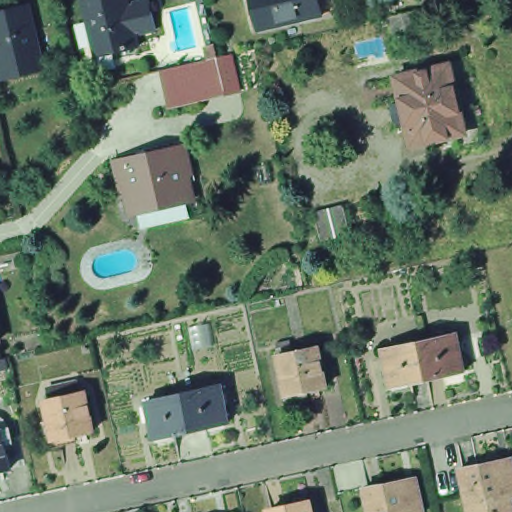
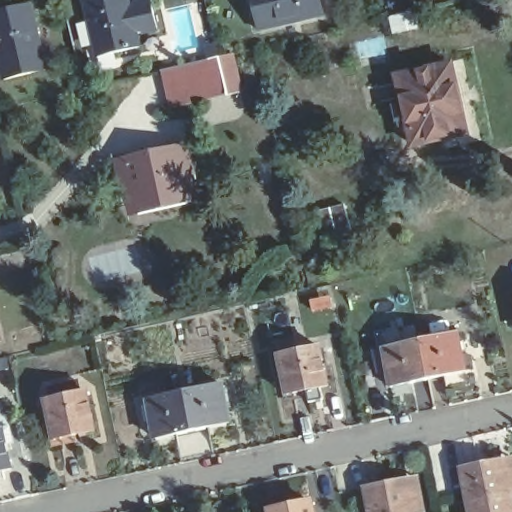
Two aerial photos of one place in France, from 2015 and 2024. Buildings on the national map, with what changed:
unchanged [(84,0),(128,0),(130,6),(134,5),(151,1),(158,31),(142,35),(137,36),(140,49),(98,58),(84,0)]
unchanged [(253,0),(322,0),(327,21),(261,36),(253,0)]
unchanged [(47,75),(4,84),(0,65),(0,8),(33,2),(47,75)]
unchanged [(157,76),(225,60),(236,106),(163,116),(157,76)]
unchanged [(457,134),(415,144),(410,117),(399,119),(396,102),(406,100),(401,74),(454,63),(465,110),(470,131),(457,134)]
unchanged [(180,149),(191,210),(110,229),(100,165),(180,149)]
unchanged [(347,204),(353,233),(339,237),(325,239),(318,211),(331,208),(347,204)]
unchanged [(0,333),(0,325),(2,333),(0,333)]
unchanged [(430,381),(423,344),(460,337),(467,373),(430,381)]
unchanged [(395,389),(387,352),(423,344),(430,381),(395,389)]
unchanged [(286,397),(283,381),(278,358),(318,349),(327,389),(292,396),(286,397)]
unchanged [(194,433),(187,396),(224,388),(231,425),(194,433)]
unchanged [(53,443),(50,425),(45,403),(85,394),(93,434),(59,441),(53,443)]
unchanged [(158,441),(155,423),(148,424),(145,409),(152,408),(151,403),(187,396),(194,433),(158,441)]
unchanged [(4,432),(13,472),(0,474),(0,433),(4,432)]
unchanged [(465,468),(506,459),(511,485),(512,485),(512,512),(474,512),(465,468)]
unchanged [(364,489),(405,481),(411,507),(420,504),(421,512),(369,512),(364,489)]
unchanged [(313,506),(314,512),(282,512),(313,506)]

